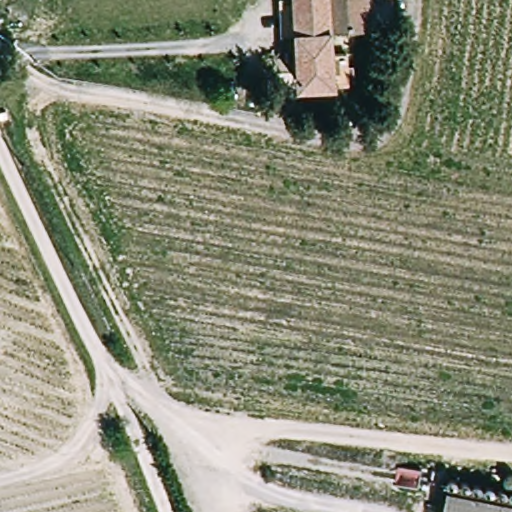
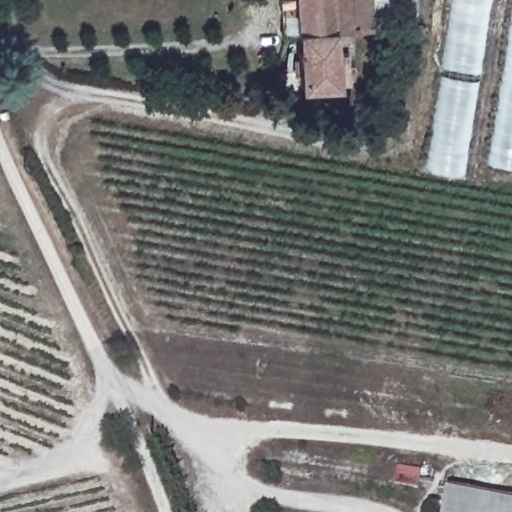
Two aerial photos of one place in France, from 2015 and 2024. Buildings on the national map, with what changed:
unchanged [(348,86),(299,90),(293,0),(391,0),(393,26),(373,27),(332,31),(333,61),(347,60),(348,86)]
new [(450,0),(490,0),(462,176),(423,170),(450,0)]
new [(512,4),(512,167),(487,164),(512,4)]
unchanged [(512,504),(512,512),(448,512),(452,493),(512,504)]

